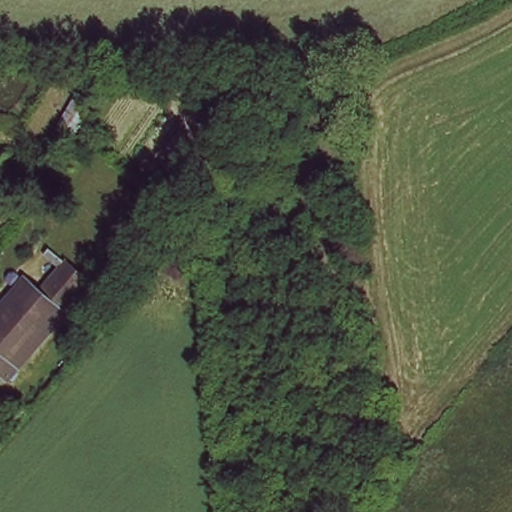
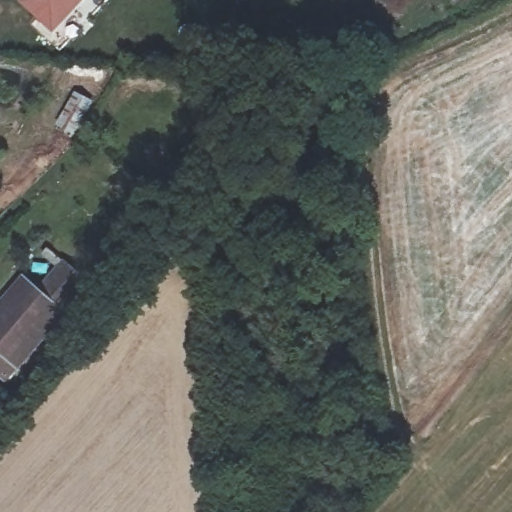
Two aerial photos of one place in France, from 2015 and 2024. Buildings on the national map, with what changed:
new [(19,3),(22,0),(84,0),(52,34),(19,3)]
unchanged [(76,97),(90,105),(75,134),(60,122),(76,97)]
unchanged [(60,267),(85,287),(67,309),(41,287),(60,267)]
unchanged [(9,383),(0,376),(0,319),(27,287),(63,316),(9,383)]

